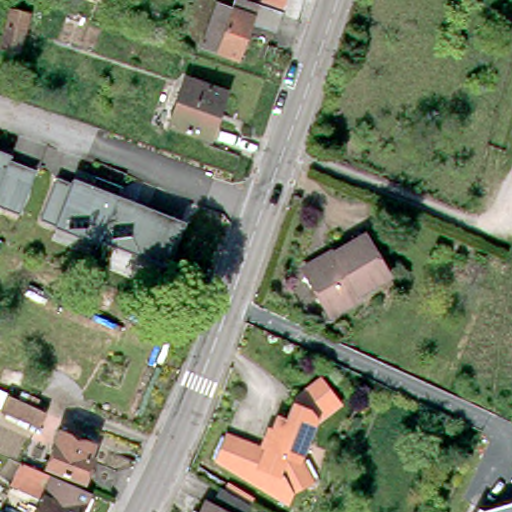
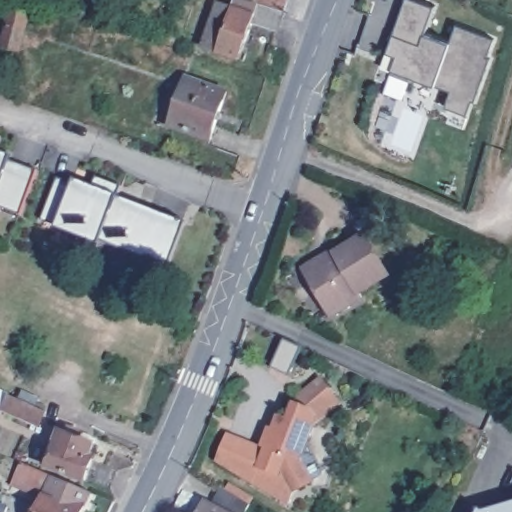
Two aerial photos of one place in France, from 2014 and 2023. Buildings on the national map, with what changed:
unchanged [(92,19),(82,15),(88,0),(100,0),(92,19)]
unchanged [(223,64),(188,52),(205,8),(219,14),(223,2),(242,8),(245,0),(274,0),(269,17),(262,37),(237,29),(223,64)]
new [(457,26),(493,39),(487,59),(490,59),(475,101),(472,100),(467,114),(445,107),(450,90),(435,84),(392,69),(396,55),(387,51),(406,0),(417,0),(435,6),(425,34),(450,43),(457,26)]
unchanged [(20,47),(3,42),(12,6),(28,10),(20,47)]
unchanged [(210,140),(170,126),(187,78),(227,93),(210,140)]
unchanged [(31,190),(21,216),(0,208),(0,157),(38,171),(31,190)]
unchanged [(86,189),(92,191),(97,177),(122,187),(117,201),(172,221),(173,217),(182,220),(172,247),(165,265),(112,244),(102,240),(103,238),(103,237),(98,235),(60,221),(58,226),(43,221),(50,203),(59,179),(86,189)]
unchanged [(390,276),(362,293),(364,297),(332,316),(307,274),(305,269),(335,252),(366,235),(390,276)]
unchanged [(310,423),(305,462),(310,487),(290,493),(282,503),(213,460),(223,436),(262,452),(275,419),(285,421),(292,398),(315,380),(335,405),(310,423)]
unchanged [(40,426),(3,410),(0,409),(0,390),(10,394),(47,412),(40,426)]
unchanged [(83,452),(87,456),(112,465),(105,484),(42,461),(56,426),(89,439),(83,452)]
unchanged [(29,457),(20,453),(28,436),(37,439),(29,457)]
unchanged [(34,503),(38,494),(7,480),(16,458),(85,487),(75,512),(19,512),(24,499),(34,503)]
unchanged [(231,512),(177,512),(180,507),(185,509),(190,498),(201,504),(211,485),(237,501),(231,512)]
unchanged [(482,510),(512,502),(512,512),(476,512),(478,508),(482,510)]

